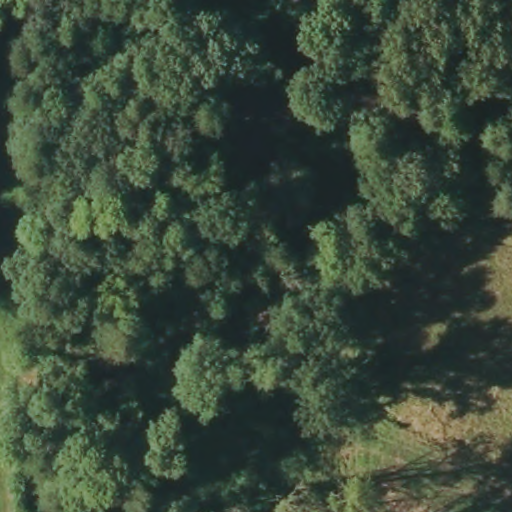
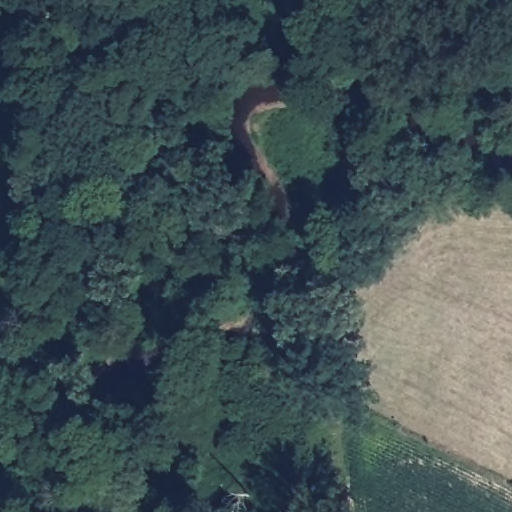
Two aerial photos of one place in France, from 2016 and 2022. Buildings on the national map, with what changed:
[]

